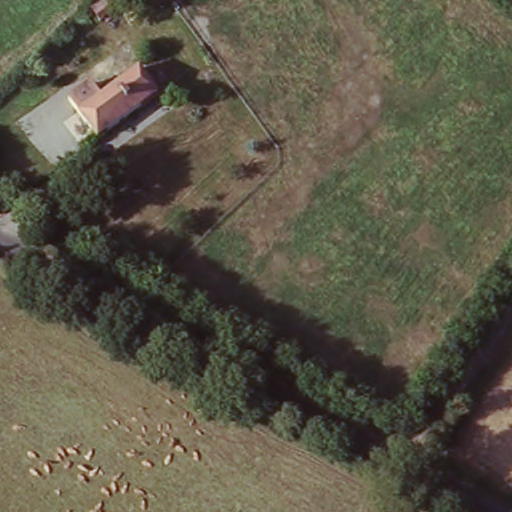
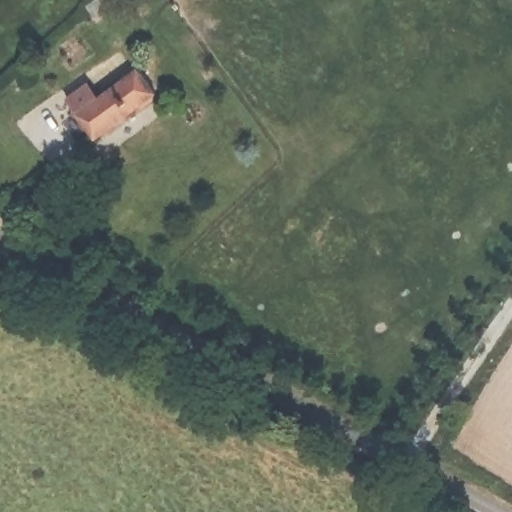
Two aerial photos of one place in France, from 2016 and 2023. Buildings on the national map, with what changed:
unchanged [(97,0),(123,0),(106,13),(96,1),(97,0)]
unchanged [(80,110),(71,97),(85,86),(95,100),(140,66),(159,93),(100,136),(80,110)]

